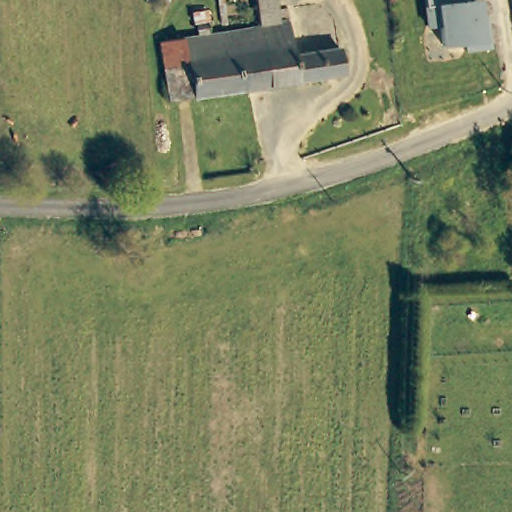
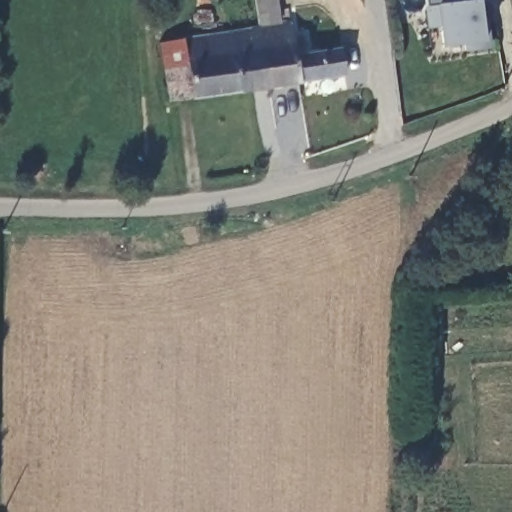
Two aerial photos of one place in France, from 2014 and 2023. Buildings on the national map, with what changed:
unchanged [(284,24),(292,22),(296,38),(298,53),(301,80),(268,85),(260,27),(256,0),(280,0),(284,24)]
unchanged [(486,48),(462,52),(462,45),(440,46),(439,29),(427,29),(424,0),(480,0),(486,48)]
unchanged [(199,37),(197,24),(211,22),(213,35),(228,32),(236,90),(196,96),(187,39),(199,37)]
unchanged [(228,32),(260,27),(268,85),(236,90),(228,32)]
unchanged [(170,100),(161,43),(187,39),(196,96),(170,100)]
unchanged [(346,73),(301,80),(298,53),(342,46),(346,73)]

